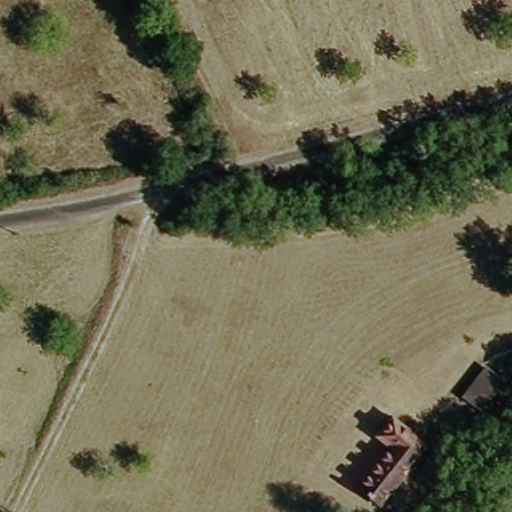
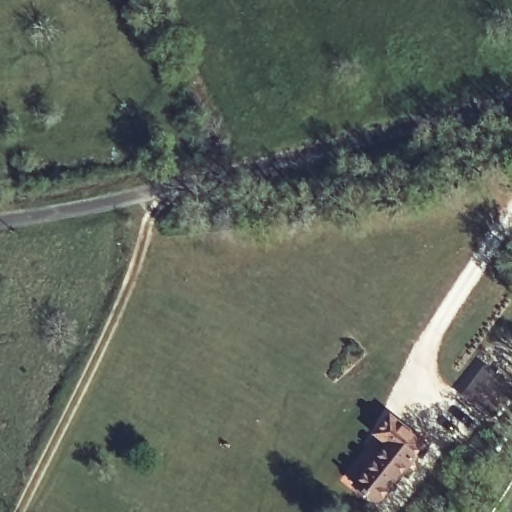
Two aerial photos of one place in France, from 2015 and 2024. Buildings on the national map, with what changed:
unchanged [(507,388),(487,413),(467,399),(487,373),(507,388)]
unchanged [(391,415),(395,416),(429,444),(380,504),(355,484),(386,445),(375,437),(391,415)]

